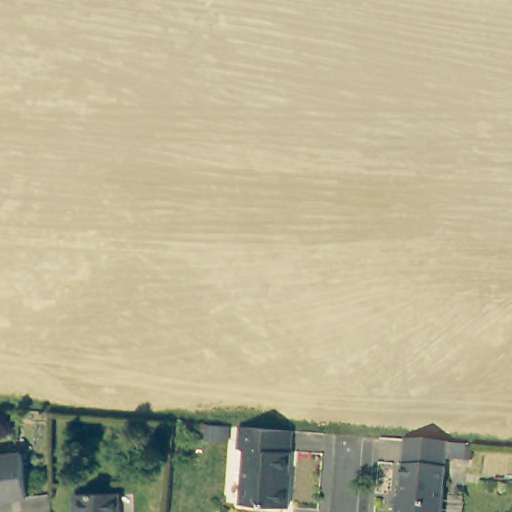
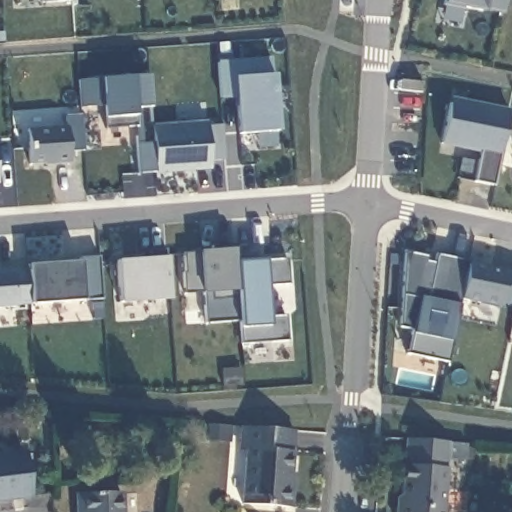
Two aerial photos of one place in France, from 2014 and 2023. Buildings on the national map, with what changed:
new [(42,2),(42,0),(72,0),(42,2)]
new [(506,0),(503,12),(485,8),(485,11),(445,3),(446,0),(506,0)]
new [(275,74),(280,131),(239,133),(235,98),(220,99),(217,61),(271,57),(275,74)]
new [(136,108),(138,125),(107,128),(106,117),(105,104),(83,106),(80,81),(104,79),(149,75),(152,105),(136,108)]
new [(493,184),(475,181),(481,152),(441,145),(451,97),(512,109),(493,184)]
new [(69,152),(69,162),(30,164),(27,129),(64,125),(64,116),(82,115),(85,151),(69,152)]
new [(210,161),(210,169),(140,173),(138,143),(154,142),(153,125),(207,121),(208,126),(222,124),(225,159),(210,161)]
new [(268,288),(270,318),(286,316),(288,340),(240,343),(240,326),(239,298),(214,299),(213,290),(201,291),(187,293),(185,255),(199,252),(234,248),(235,262),(267,259),(288,257),(290,283),(268,288)]
new [(502,304),(500,308),(460,299),(447,361),(408,353),(412,329),(400,327),(407,252),(427,256),(427,260),(432,261),(435,255),(469,263),(512,272),(512,307),(502,304)]
new [(120,303),(118,259),(167,256),(170,299),(120,303)]
new [(15,307),(0,308),(0,268),(10,267),(27,265),(82,260),(100,257),(103,299),(83,301),(15,307)]
unchanged [(297,432),(294,484),(296,484),(295,507),(247,504),(250,451),(245,450),(246,427),(297,432)]
unchanged [(447,444),(443,512),(394,512),(394,508),(401,502),(405,441),(447,444)]
unchanged [(27,494),(0,498),(0,450),(21,448),(27,494)]
unchanged [(78,492),(123,492),(123,512),(78,512),(78,492)]

